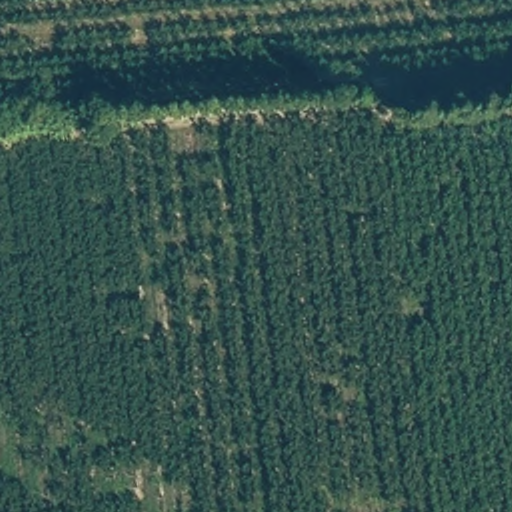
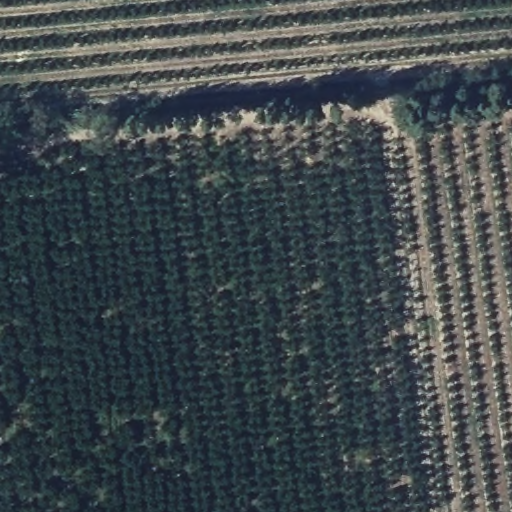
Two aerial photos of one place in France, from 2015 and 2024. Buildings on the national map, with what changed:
[]

